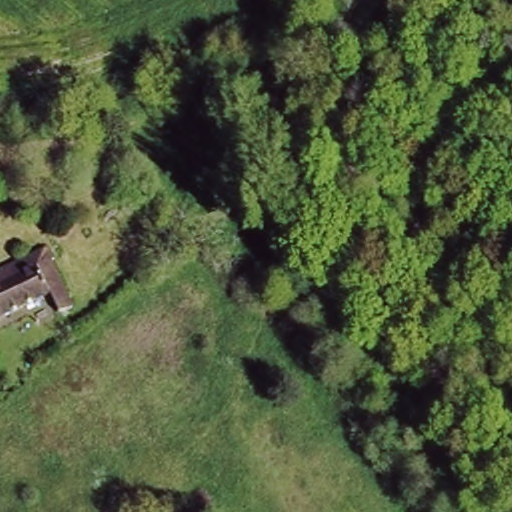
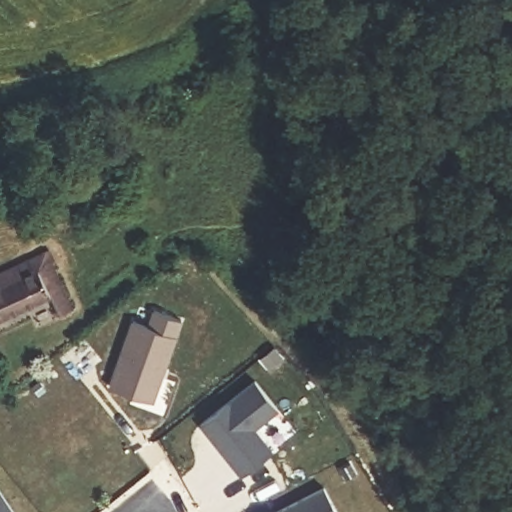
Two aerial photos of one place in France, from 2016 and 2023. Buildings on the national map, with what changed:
unchanged [(57,310),(0,337),(0,288),(42,268),(56,263),(61,274),(59,275),(82,323),(67,330),(57,310)]
new [(130,318),(149,324),(152,307),(184,319),(177,336),(155,400),(108,384),(130,318)]
new [(257,380),(279,408),(257,427),(275,449),(241,475),(200,424),(257,380)]
new [(0,512),(0,484),(17,512),(0,512)]
new [(339,512),(272,512),(325,486),(339,512)]

